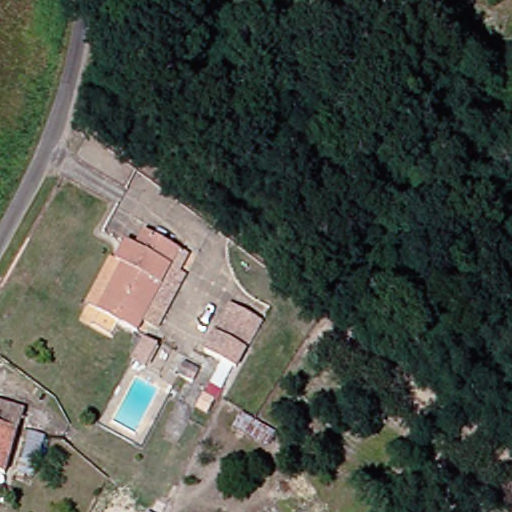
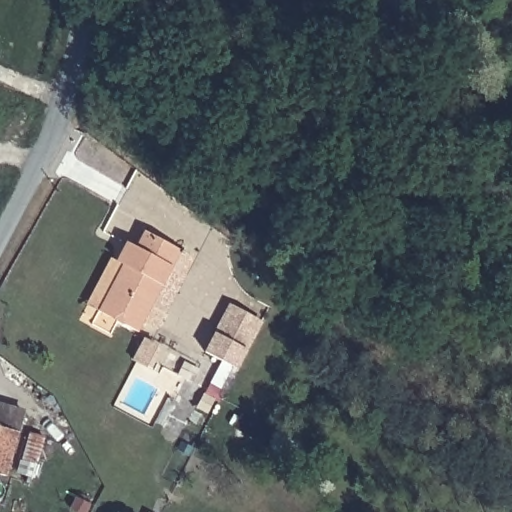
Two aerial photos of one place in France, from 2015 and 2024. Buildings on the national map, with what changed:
unchanged [(106,262),(118,240),(127,245),(137,226),(176,251),(184,255),(177,267),(184,271),(165,304),(150,295),(127,333),(87,310),(74,300),(97,257),(106,262)]
unchanged [(209,388),(211,380),(210,378),(220,356),(202,345),(227,300),(258,317),(217,391),(209,388)]
unchanged [(133,353),(145,335),(154,340),(143,358),(133,353)]
unchanged [(172,371),(178,360),(190,368),(186,380),(172,371)]
unchanged [(19,420),(6,468),(0,467),(0,400),(22,407),(19,420)]

